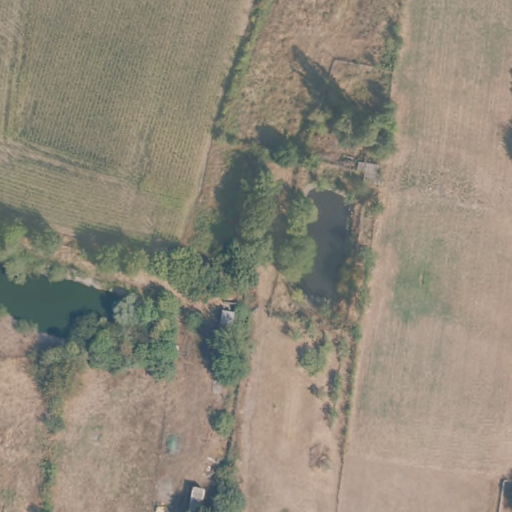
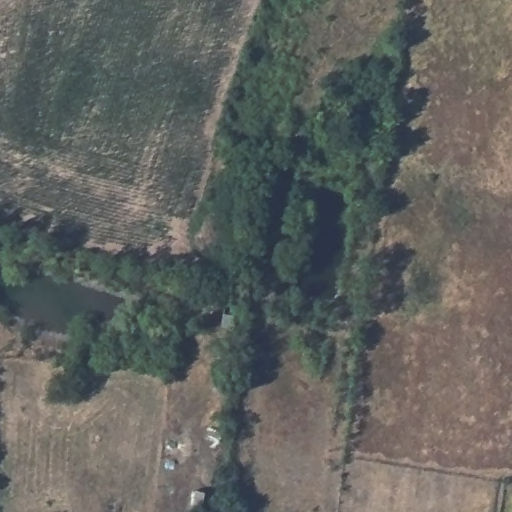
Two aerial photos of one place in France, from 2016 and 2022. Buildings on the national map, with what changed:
[]

